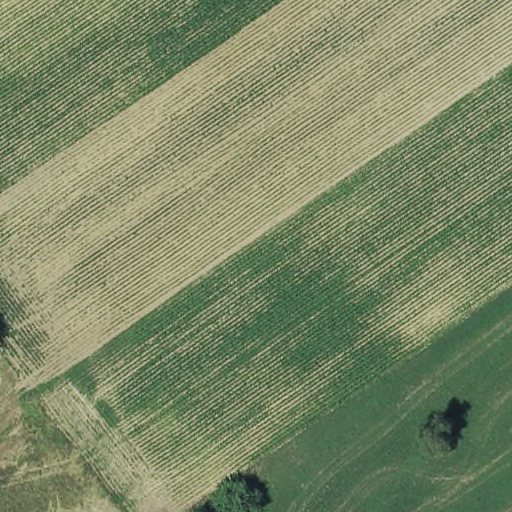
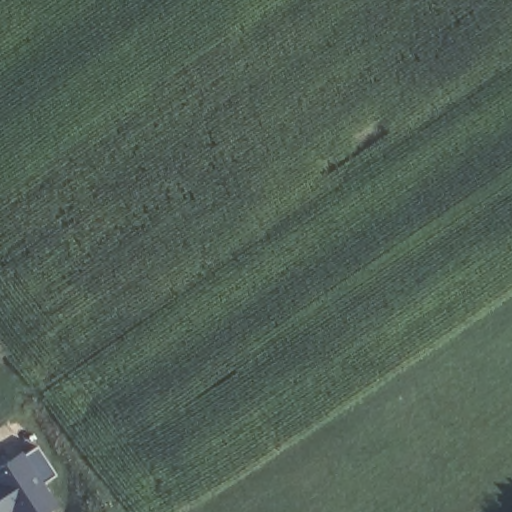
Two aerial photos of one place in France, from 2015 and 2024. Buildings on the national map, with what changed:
new [(54,475),(40,485),(60,509),(55,512),(0,512),(0,471),(32,446),(54,475)]

